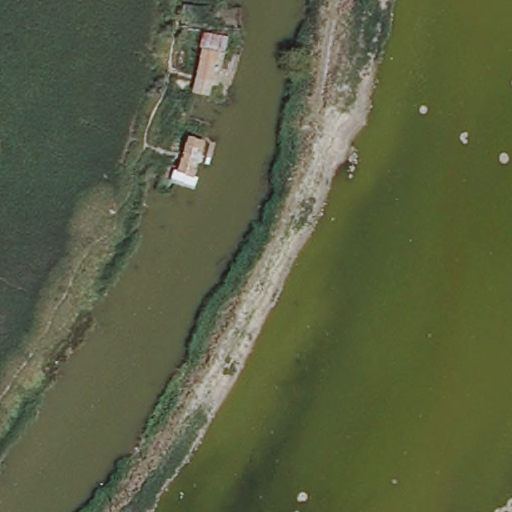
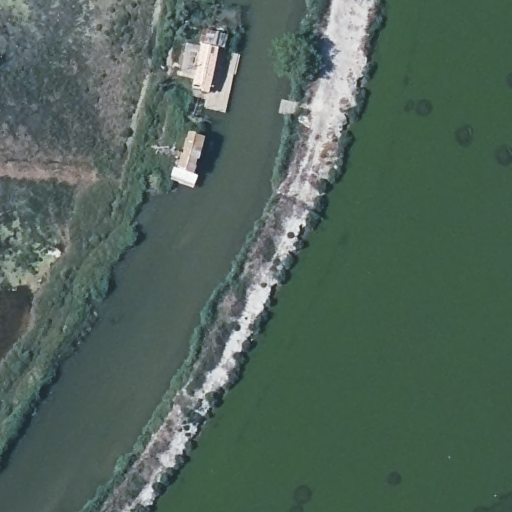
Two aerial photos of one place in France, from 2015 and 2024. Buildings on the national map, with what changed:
unchanged [(225,31),(215,90),(194,89),(202,27),(225,31)]
unchanged [(205,136),(194,182),(176,180),(190,130),(205,136)]

